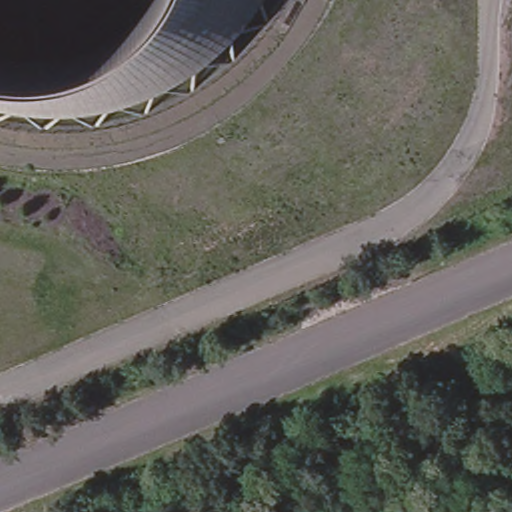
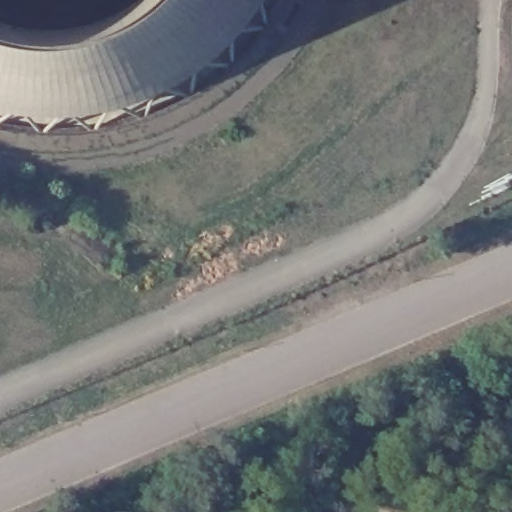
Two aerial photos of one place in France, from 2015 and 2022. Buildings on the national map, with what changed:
unchanged [(239,60),(182,99),(150,113),(100,126),(39,129),(0,123),(0,0),(289,0),(264,35),(239,60)]

